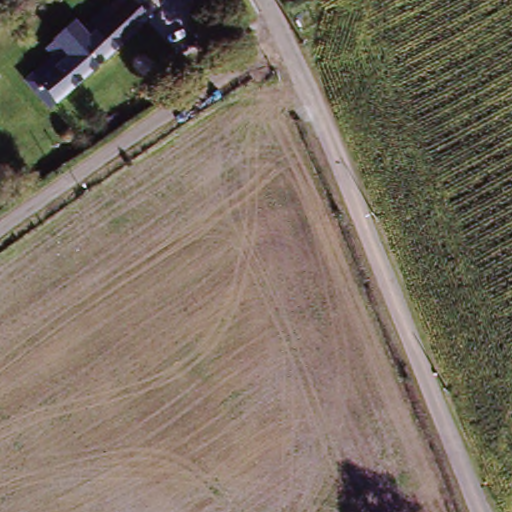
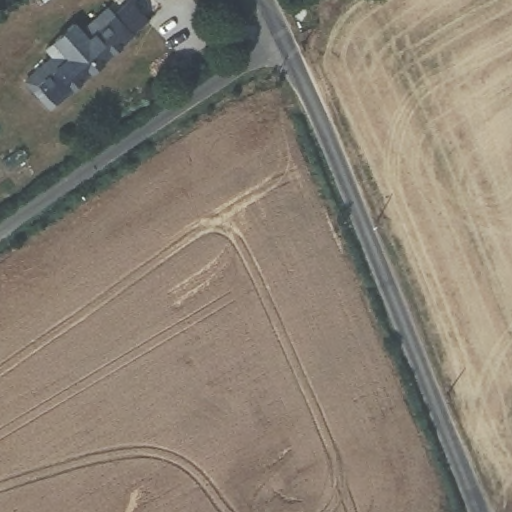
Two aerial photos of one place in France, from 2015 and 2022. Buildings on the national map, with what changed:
unchanged [(110,26),(135,4),(148,20),(53,101),(30,73),(100,13),(110,26)]

